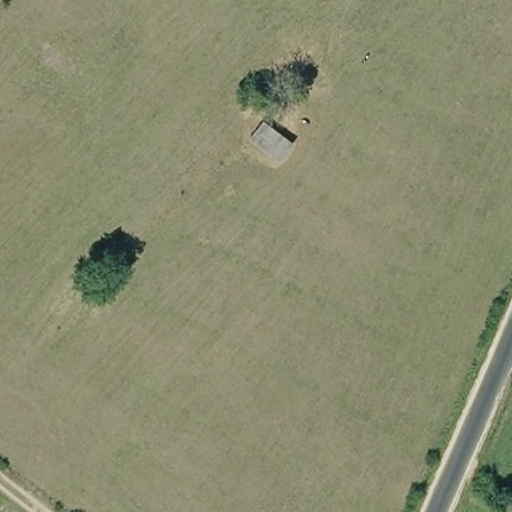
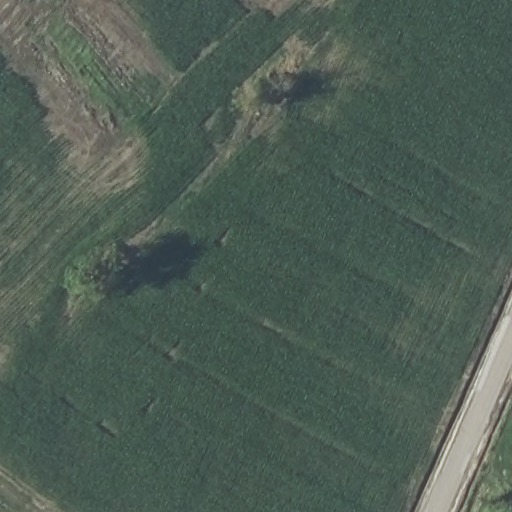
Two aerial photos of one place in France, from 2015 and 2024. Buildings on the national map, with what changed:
unchanged [(262,126),(292,148),(275,166),(247,146),(262,126)]

